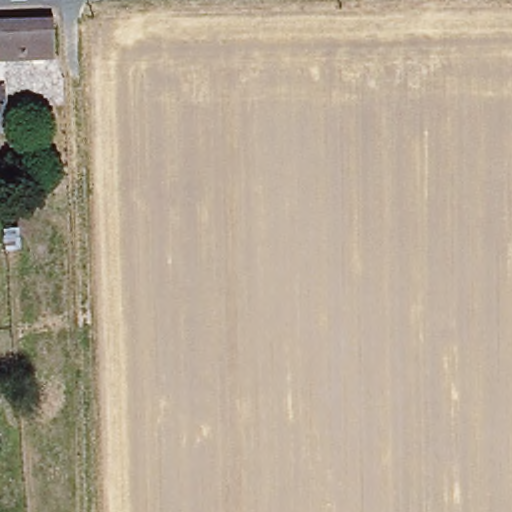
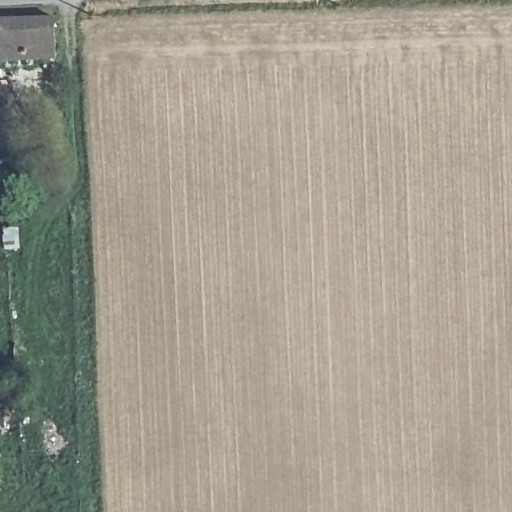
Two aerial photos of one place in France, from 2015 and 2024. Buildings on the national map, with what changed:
unchanged [(0,59),(0,19),(54,17),(55,57),(0,59)]
unchanged [(0,130),(0,86),(1,85),(2,92),(4,92),(8,130),(0,130)]
unchanged [(16,249),(8,250),(5,226),(14,226),(16,249)]

